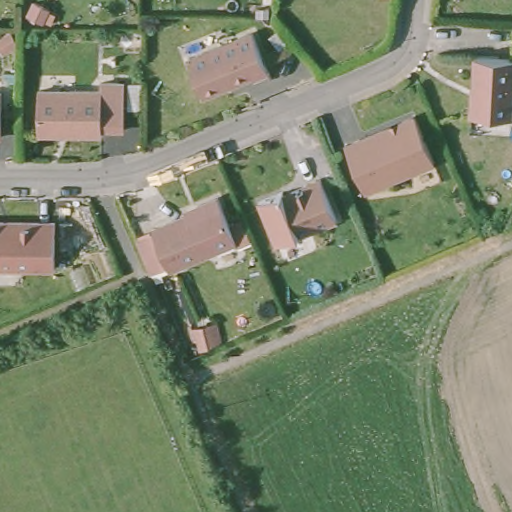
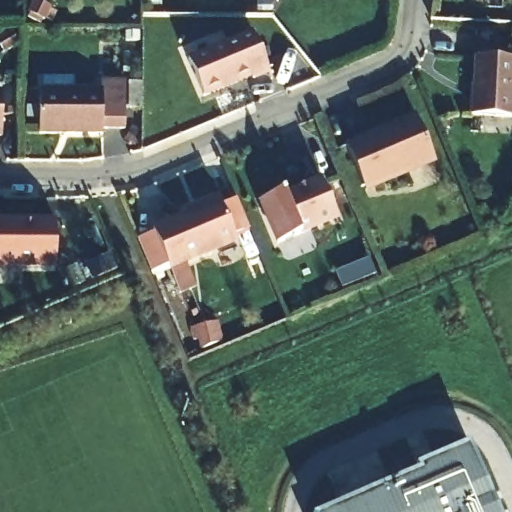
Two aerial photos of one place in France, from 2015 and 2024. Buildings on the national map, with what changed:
unchanged [(249,34),(265,74),(250,81),(249,77),(200,97),(185,61),(249,34)]
unchanged [(464,120),(465,100),(467,100),(470,62),(507,64),(505,122),(464,120)]
unchanged [(96,92),(96,84),(119,84),(118,131),(95,130),(95,135),(32,135),(32,91),(96,92)]
unchanged [(410,119),(429,166),(360,195),(340,147),(410,119)]
unchanged [(254,204),(277,194),(279,197),(299,189),(299,188),(315,182),(332,222),(272,247),(254,204)]
unchanged [(156,227),(202,208),(200,205),(222,196),(242,239),(173,267),(172,265),(159,271),(144,235),(157,229),(156,227)]
unchanged [(0,271),(0,221),(50,222),(50,272),(0,271)]
new [(500,512),(312,512),(420,468),(417,461),(470,441),(500,512)]

